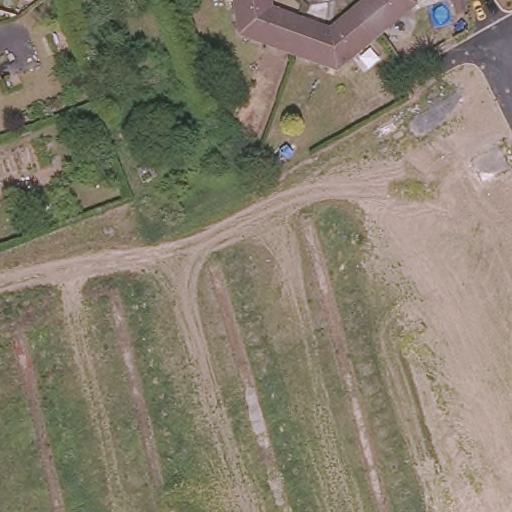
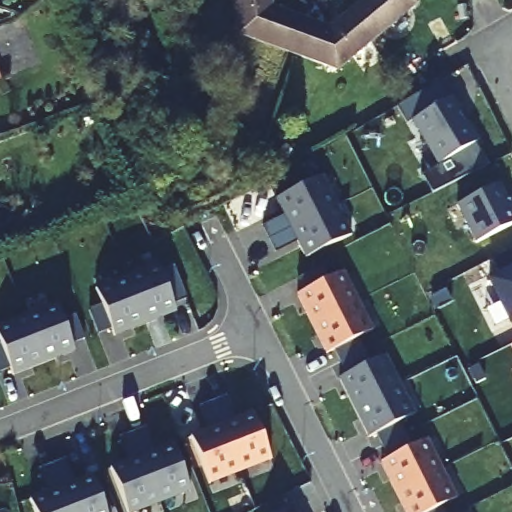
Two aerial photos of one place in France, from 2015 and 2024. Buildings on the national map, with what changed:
unchanged [(302,10),(285,49),(234,30),(230,0),(277,0),(277,1),(302,10)]
unchanged [(302,10),(330,21),(351,0),(379,27),(336,68),(285,49),(302,10)]
unchanged [(351,0),(408,0),(379,27),(351,0)]
unchanged [(6,78),(0,81),(0,62),(6,78)]
new [(417,118),(454,97),(469,122),(470,121),(482,140),(444,162),(417,118)]
new [(277,200),(319,180),(334,209),(348,239),(307,259),(292,230),(277,200)]
new [(512,201),(512,226),(480,241),(462,203),(502,182),(512,201)]
new [(263,228),(285,217),(292,230),(298,242),(275,254),(270,241),(263,228)]
new [(502,275),(494,259),(512,250),(512,319),(492,280),(502,275)]
new [(178,311),(147,323),(130,280),(162,268),(178,311)]
new [(323,268),(330,281),(307,292),(301,280),(323,268)]
new [(313,326),(299,296),(340,276),(355,305),(313,326)]
new [(147,323),(117,335),(100,292),(130,280),(147,323)]
new [(27,315),(58,303),(76,350),(45,362),(27,315)]
new [(92,309),(105,305),(114,328),(100,333),(92,309)]
new [(328,355),(314,326),(355,305),(370,335),(328,355)]
new [(0,337),(0,325),(27,315),(45,362),(15,374),(0,337)]
new [(65,320),(77,315),(87,338),(74,343),(65,320)]
new [(337,351),(359,340),(365,352),(371,365),(349,376),(342,364),(337,351)]
new [(3,344),(12,367),(0,372),(0,345),(3,344)]
new [(347,414),(332,384),(374,364),(388,393),(347,414)]
new [(362,444),(347,414),(388,393),(403,423),(362,444)]
new [(211,428),(201,405),(215,400),(224,423),(215,400),(227,395),(236,419),(255,411),(271,455),(240,466),(210,478),(192,435),(211,428)]
new [(379,435),(401,424),(407,437),(413,449),(390,460),(385,448),(379,435)]
new [(130,460),(120,437),(134,431),(147,426),(155,450),(143,455),(174,443),(190,486),(160,498),(129,510),(112,467),(130,460)]
new [(397,494),(382,464),(424,444),(439,473),(397,494)]
new [(436,512),(406,512),(397,494),(439,473),(454,503),(436,512)]
new [(108,512),(72,512),(62,487),(94,474),(108,512)]
new [(72,512),(37,512),(32,498),(62,486),(72,512)]
new [(289,508),(290,512),(280,512),(289,508)]
new [(443,508),(445,512),(436,512),(443,508)]

